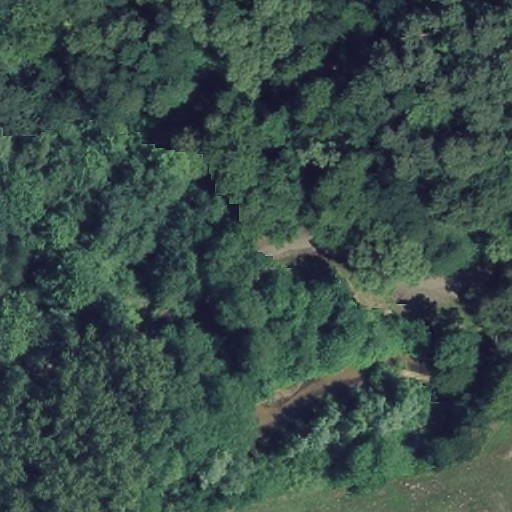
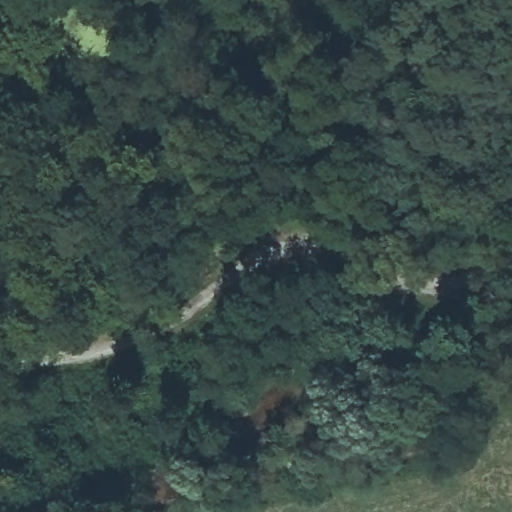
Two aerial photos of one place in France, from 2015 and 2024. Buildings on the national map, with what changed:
[]

